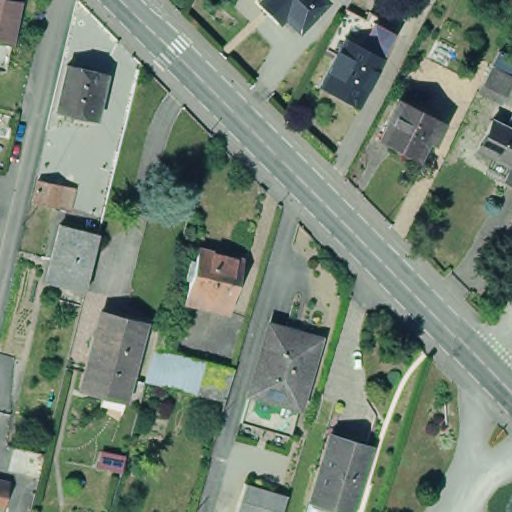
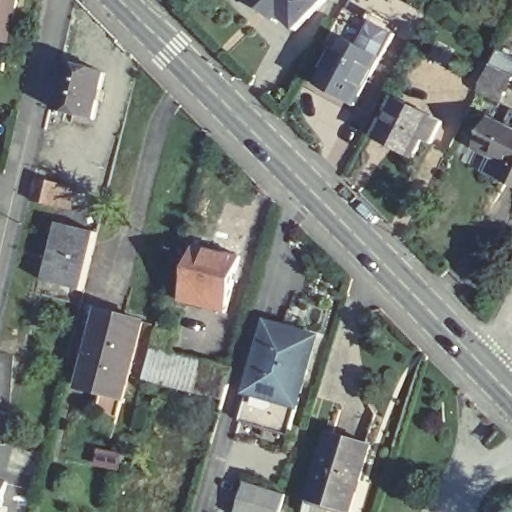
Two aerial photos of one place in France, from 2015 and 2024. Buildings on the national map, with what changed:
unchanged [(0,33),(0,0),(7,0),(0,33)]
unchanged [(249,0),(310,0),(287,25),(272,11),(267,16),(249,0)]
unchanged [(353,95),(315,75),(328,49),(317,42),(327,23),(377,51),(353,95)]
unchanged [(512,104),(473,87),(487,56),(512,72),(512,104)]
unchanged [(83,123),(45,114),(55,68),(95,77),(83,123)]
unchanged [(407,157),(368,138),(388,98),(427,118),(433,121),(422,143),(415,139),(407,157)]
unchanged [(510,156),(477,139),(491,110),(512,121),(512,174),(503,170),(510,156)]
unchanged [(52,202),(27,196),(32,174),(57,180),(70,183),(65,205),(52,202)]
unchanged [(78,285),(40,276),(55,219),(92,227),(78,285)]
unchanged [(230,311),(187,300),(192,278),(187,276),(193,254),(199,255),(201,246),(245,257),(230,311)]
unchanged [(93,386),(72,381),(92,305),(112,310),(93,386)]
unchanged [(92,399),(95,387),(93,386),(112,310),(138,317),(118,392),(115,405),(92,399)]
unchanged [(300,406),(252,392),(272,320),(321,335),(300,406)]
unchanged [(158,329),(177,335),(170,351),(233,368),(223,402),(145,382),(158,329)]
unchanged [(300,406),(292,435),(244,421),(252,392),(300,406)]
unchanged [(342,510),(301,498),(321,429),(364,442),(342,510)]
unchanged [(0,480),(0,473),(2,473),(0,480)]
unchanged [(285,512),(243,512),(250,486),(288,498),(285,512)]

